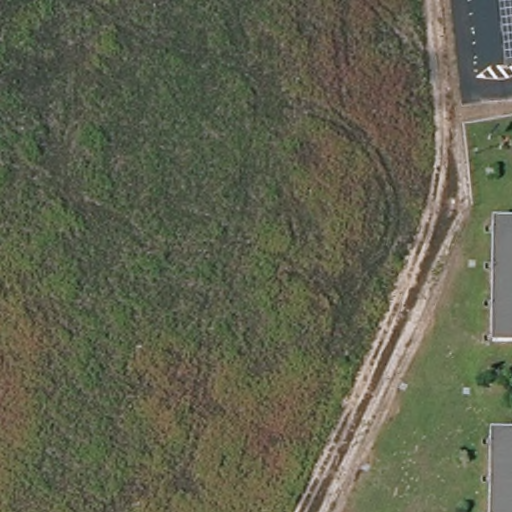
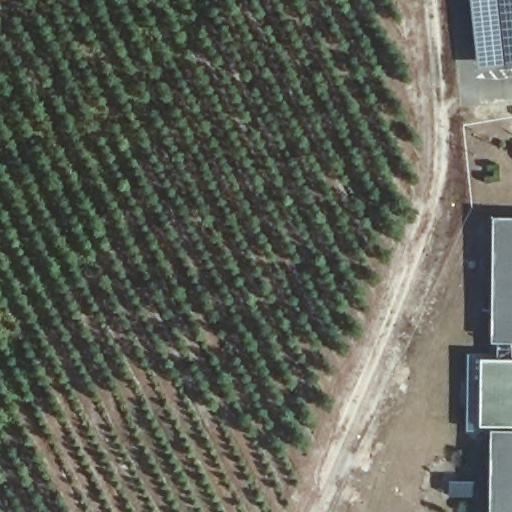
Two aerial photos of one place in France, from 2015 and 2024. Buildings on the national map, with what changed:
unchanged [(468,0),(512,0),(512,66),(476,67),(468,0)]
unchanged [(500,223),(512,224),(512,236),(500,235),(500,223)]
unchanged [(512,236),(512,338),(499,337),(500,235),(512,236)]
new [(481,359),(512,360),(512,426),(480,426),(481,359)]
unchanged [(497,449),(497,437),(512,437),(512,449),(497,449)]
unchanged [(497,449),(512,449),(512,512),(496,512),(497,449)]

